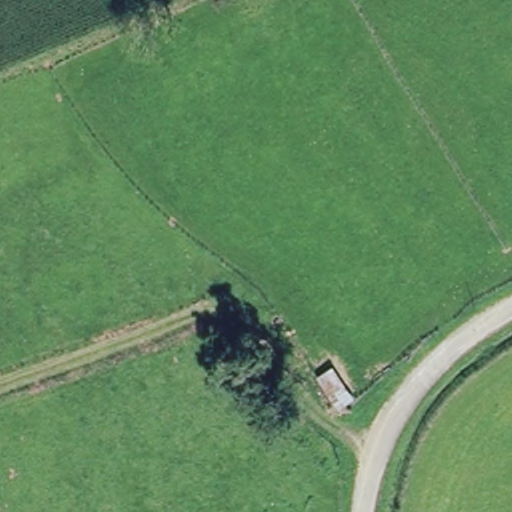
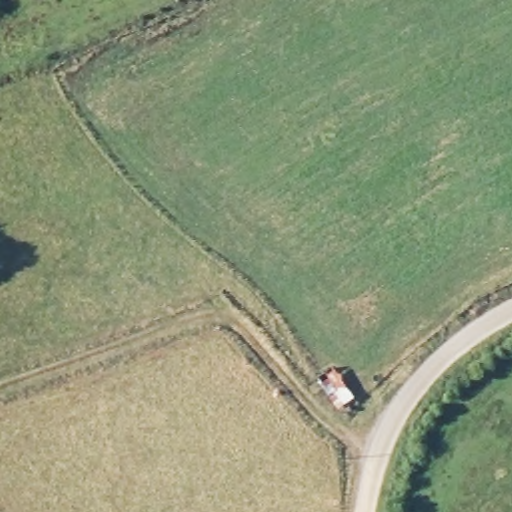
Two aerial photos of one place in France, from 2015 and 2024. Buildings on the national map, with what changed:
unchanged [(358,394),(342,405),(318,372),(335,362),(358,394)]

